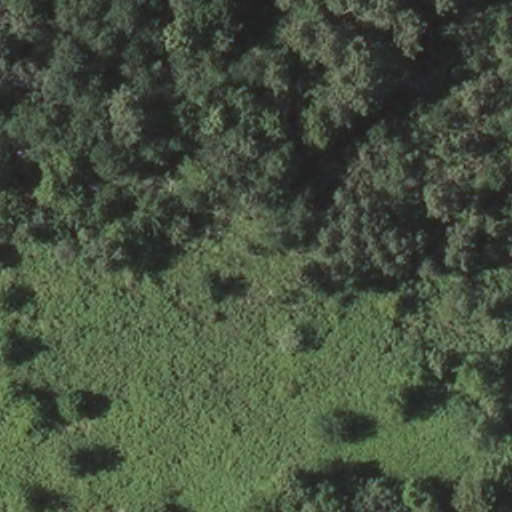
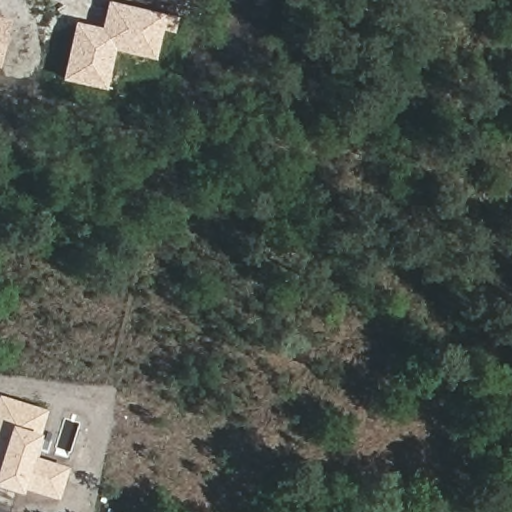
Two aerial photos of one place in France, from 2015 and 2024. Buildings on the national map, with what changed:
new [(107,0),(177,16),(174,32),(162,30),(155,60),(114,51),(106,90),(61,80),(74,21),(100,27),(107,0)]
new [(0,68),(0,18),(11,20),(0,68)]
new [(34,456),(69,468),(58,500),(23,489),(21,495),(0,488),(0,396),(48,410),(34,456)]

